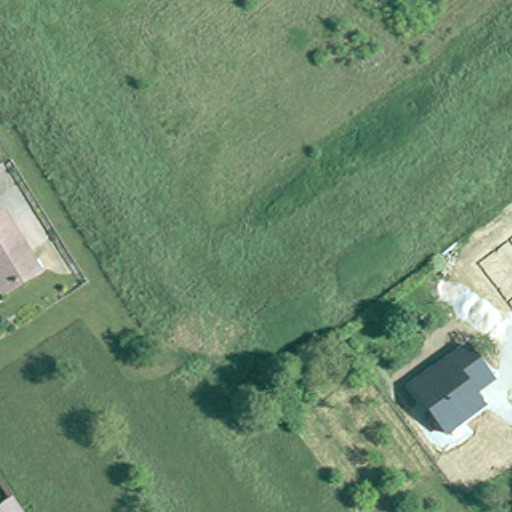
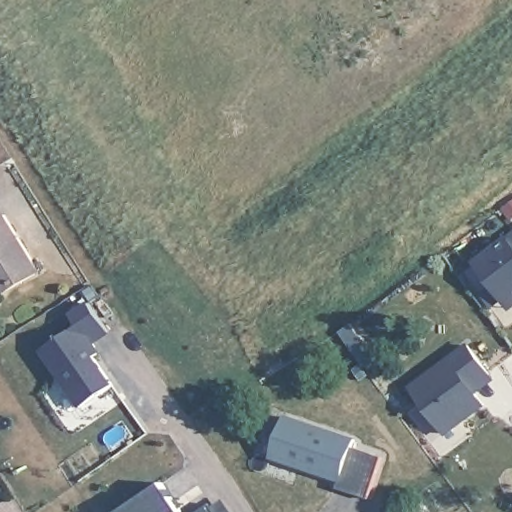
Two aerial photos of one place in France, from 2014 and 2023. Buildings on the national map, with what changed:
unchanged [(37,271),(3,293),(0,288),(0,219),(3,217),(37,271)]
unchanged [(512,236),(512,311),(476,263),(512,236)]
new [(86,299),(108,335),(95,344),(100,353),(97,356),(115,383),(80,407),(41,350),(76,326),(67,311),(86,299)]
unchanged [(497,379),(477,393),(485,405),(445,436),(410,389),(468,344),(497,379)]
new [(270,458),(283,418),(352,441),(350,448),(380,458),(366,499),(335,489),(338,481),(302,469),(293,466),(270,458)]
new [(126,512),(166,483),(184,512),(126,512)]
unchanged [(23,512),(0,512),(0,508),(13,497),(23,512)]
new [(216,507),(228,499),(235,512),(205,512),(215,505),(216,507)]

